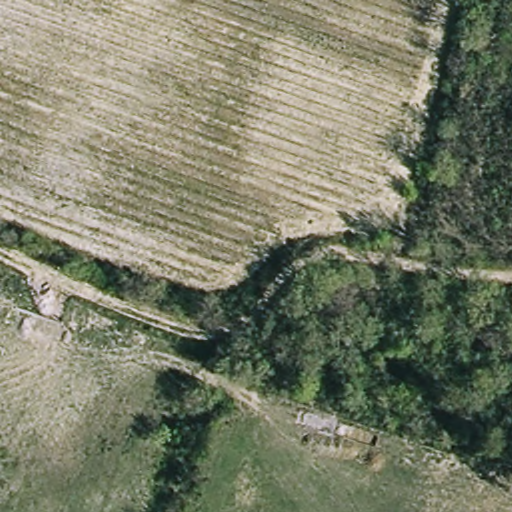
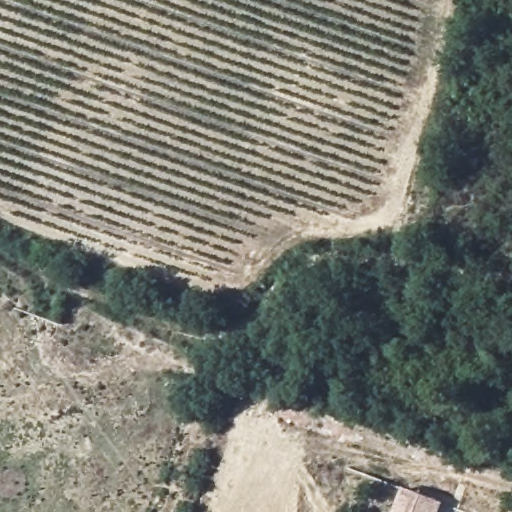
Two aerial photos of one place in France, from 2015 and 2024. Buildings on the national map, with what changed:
new [(439,512),(395,512),(403,490),(442,505),(439,512)]

